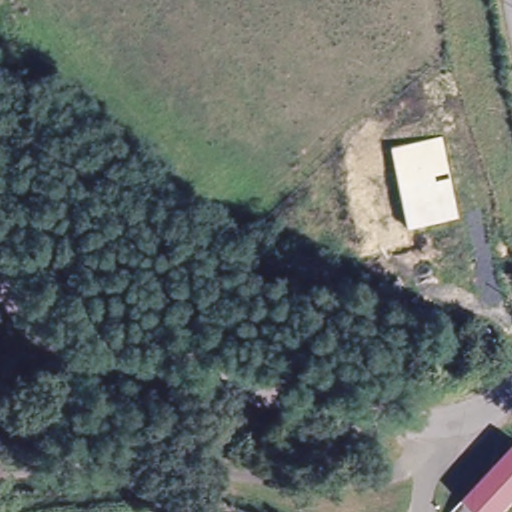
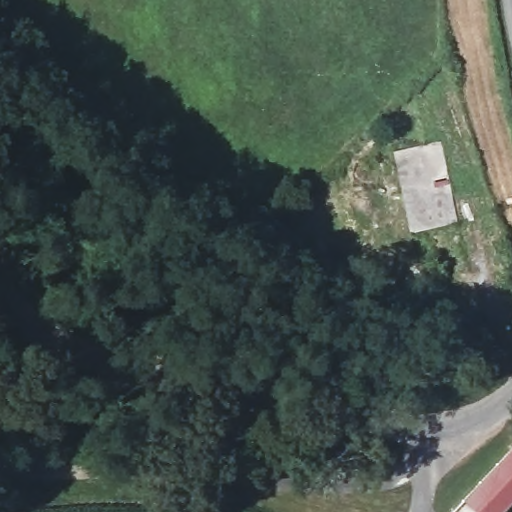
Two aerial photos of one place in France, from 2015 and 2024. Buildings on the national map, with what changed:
unchanged [(442,138),(460,222),(409,235),(392,150),(442,138)]
unchanged [(507,510),(505,512),(472,512),(459,501),(512,447),(512,504),(507,510)]

